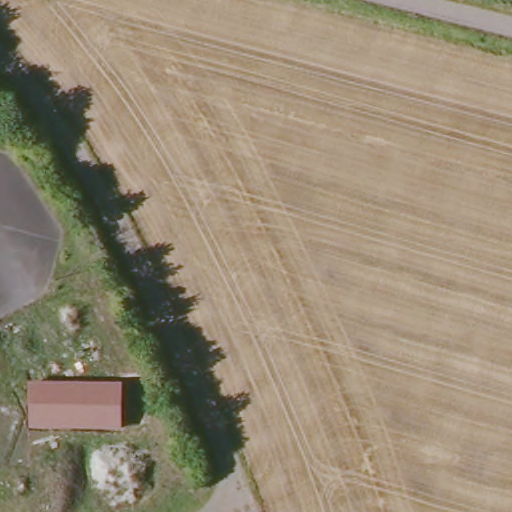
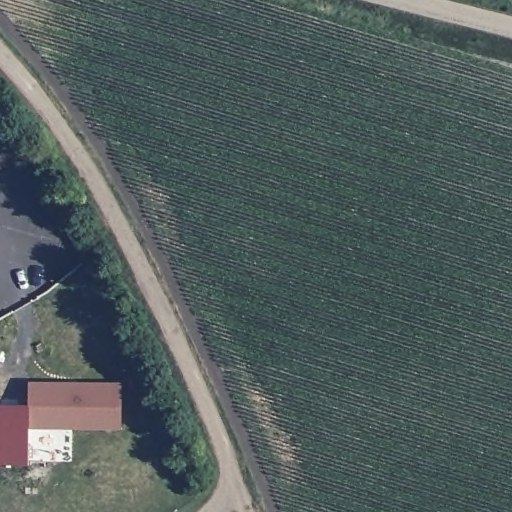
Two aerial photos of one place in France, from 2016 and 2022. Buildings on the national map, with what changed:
unchanged [(30,428),(29,382),(122,382),(122,431),(30,428)]
new [(0,465),(0,405),(30,406),(30,428),(30,466),(0,465)]

